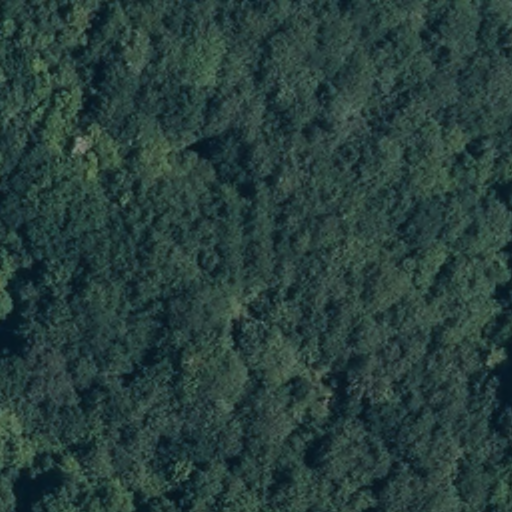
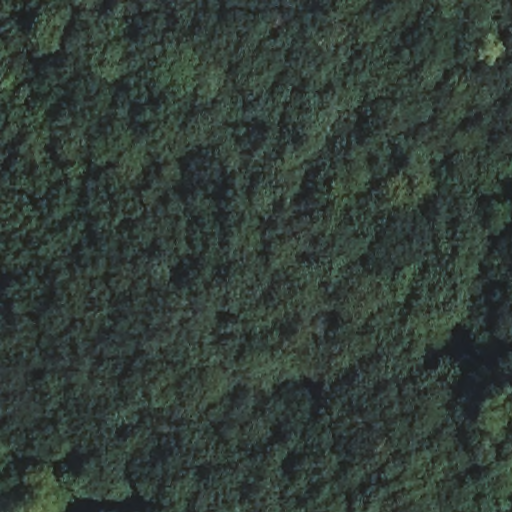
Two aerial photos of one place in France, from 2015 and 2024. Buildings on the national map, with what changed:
[]

